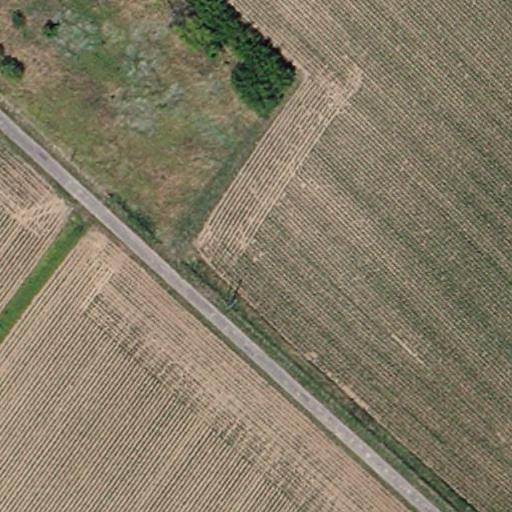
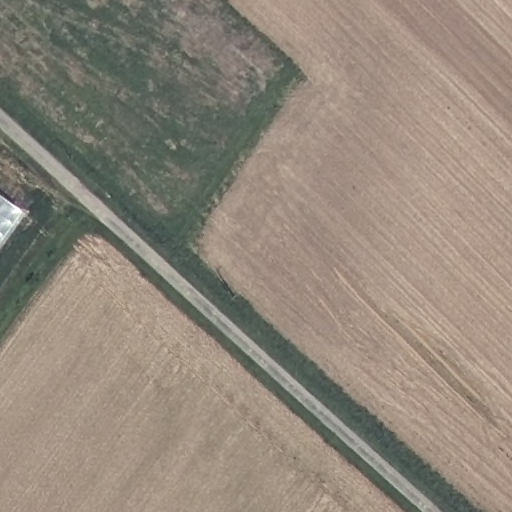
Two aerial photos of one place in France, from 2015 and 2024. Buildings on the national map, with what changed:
new [(24,213),(0,246),(0,196),(24,213)]

